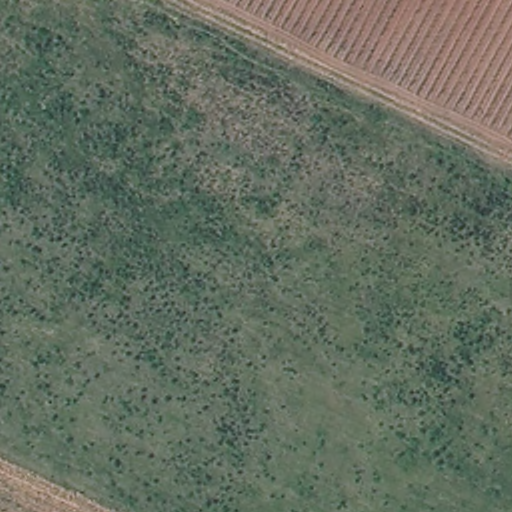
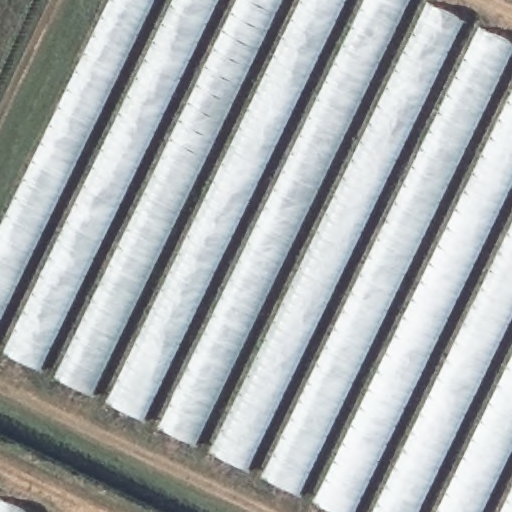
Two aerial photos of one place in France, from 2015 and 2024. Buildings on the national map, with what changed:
new [(336,512),(0,350),(0,229),(110,0),(422,0),(512,43),(512,512),(336,512)]
new [(0,512),(0,499),(28,512),(0,512)]

